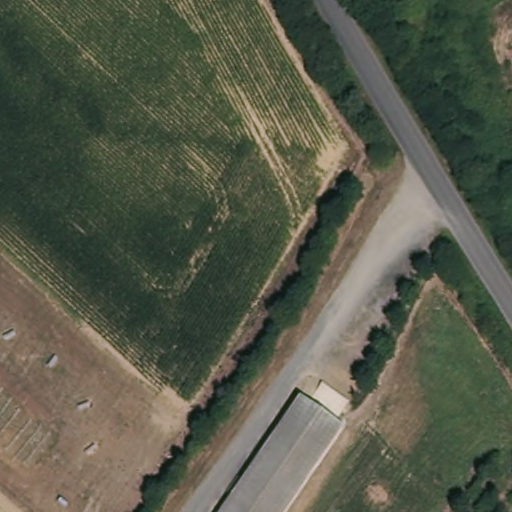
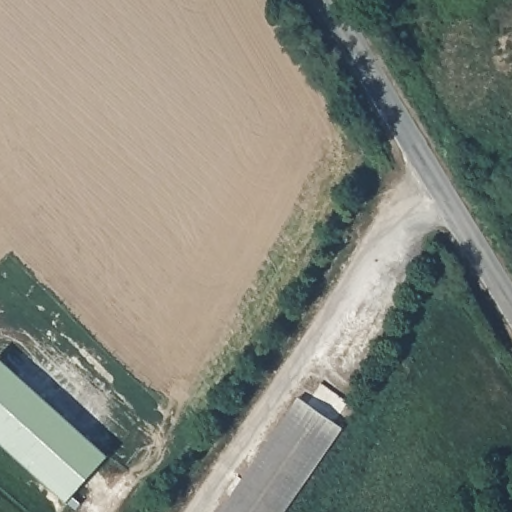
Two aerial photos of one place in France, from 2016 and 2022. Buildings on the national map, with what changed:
new [(110,455),(68,502),(0,440),(0,355),(110,455)]
unchanged [(350,424),(289,512),(234,512),(313,398),(350,424)]

